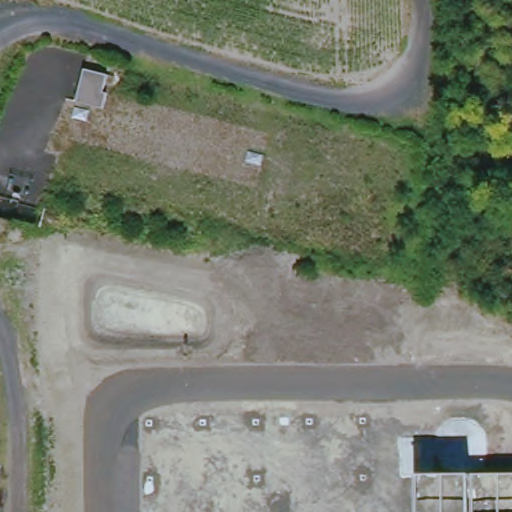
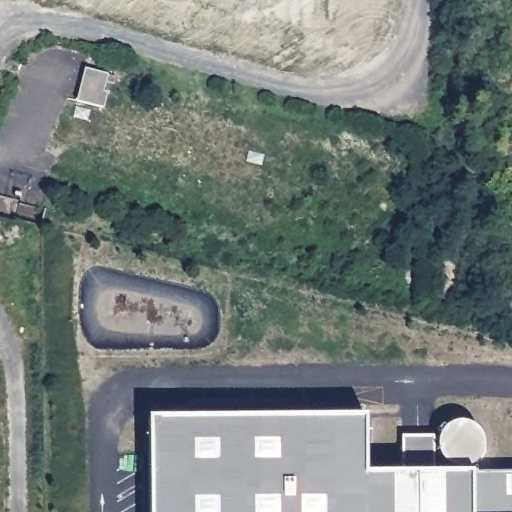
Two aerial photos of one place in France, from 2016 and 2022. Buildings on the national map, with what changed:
unchanged [(109,69),(101,101),(74,94),(82,62),(109,69)]
new [(365,419),(366,476),(403,474),(403,437),(441,435),(446,428),(452,424),(465,422),(474,424),(479,430),(484,439),(484,446),(483,454),(471,474),(416,474),(416,512),(149,512),(148,421),(365,419)]
unchanged [(416,512),(416,474),(512,473),(512,512),(416,512)]

